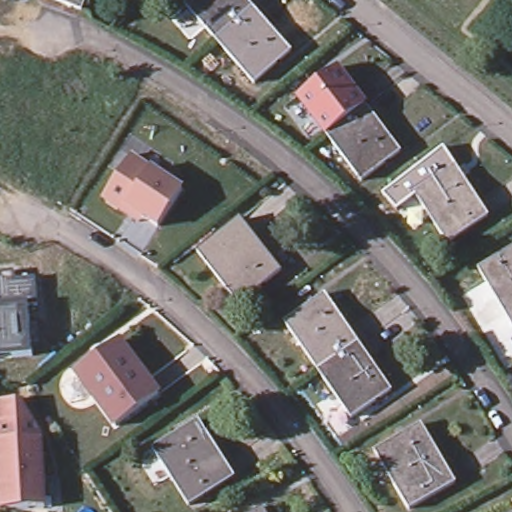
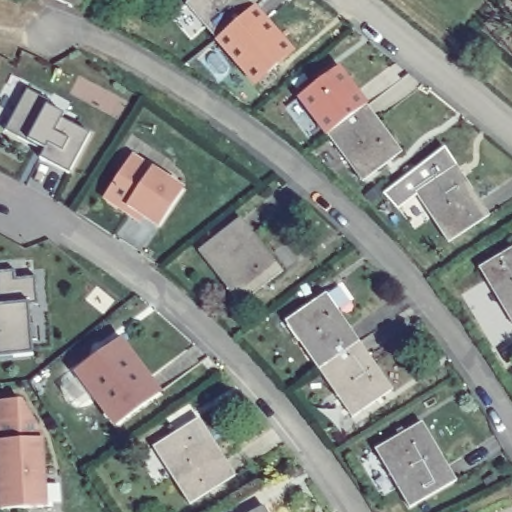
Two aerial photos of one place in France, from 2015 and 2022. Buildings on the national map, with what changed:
unchanged [(80,13),(47,0),(86,0),(80,13)]
unchanged [(187,6),(194,0),(245,0),(257,14),(222,44),(187,6)]
unchanged [(257,14),(293,57),(258,87),(222,44),(257,14)]
unchanged [(335,71),(365,106),(327,135),(326,133),(299,101),(335,71)]
new [(28,92),(50,104),(48,108),(65,117),(63,122),(92,137),(70,176),(41,161),(46,152),(40,149),(39,151),(7,134),(28,92)]
unchanged [(365,106),(370,112),(399,151),(364,179),(327,135),(365,106)]
unchanged [(117,211),(106,204),(104,195),(128,159),(180,193),(156,230),(140,219),(137,225),(117,211)]
unchanged [(453,175),(485,220),(450,244),(418,199),(453,175)]
unchanged [(243,222),(282,276),(238,307),(200,253),(243,222)]
unchanged [(512,319),(483,268),(512,251),(512,319)]
unchanged [(37,305),(27,305),(30,355),(0,358),(0,274),(13,274),(14,282),(35,280),(37,305)]
unchanged [(320,368),(292,323),(332,299),(362,343),(322,369),(320,368)]
unchanged [(120,342),(159,394),(117,426),(77,374),(120,342)]
unchanged [(362,343),(393,388),(352,417),(322,370),(322,369),(362,343)]
unchanged [(22,399),(43,432),(47,505),(3,508),(0,458),(0,400),(22,399)]
unchanged [(198,422),(235,477),(192,505),(157,448),(198,422)]
unchanged [(423,428),(455,485),(409,511),(377,455),(423,428)]

